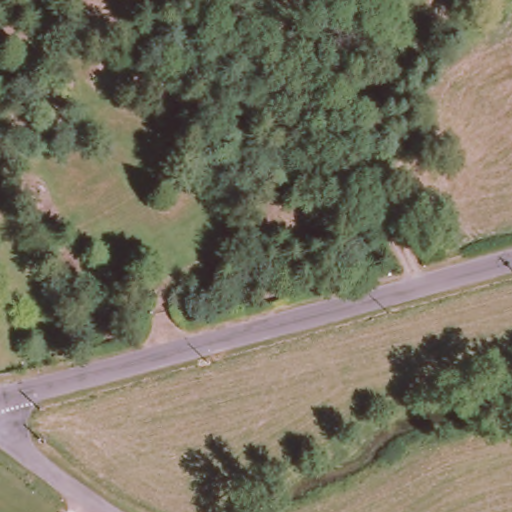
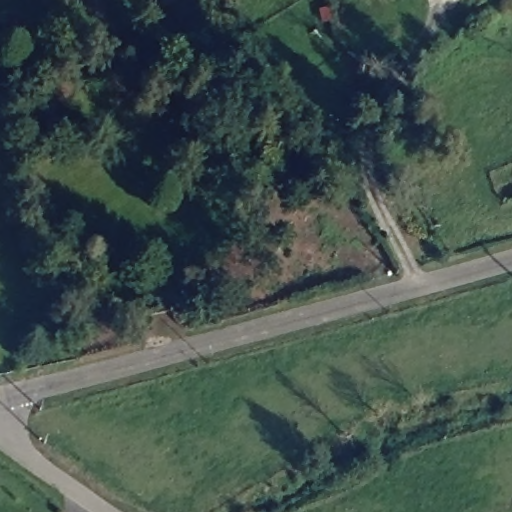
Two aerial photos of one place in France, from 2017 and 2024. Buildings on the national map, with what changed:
unchanged [(410,246),(418,259),(408,265),(400,252),(410,246)]

